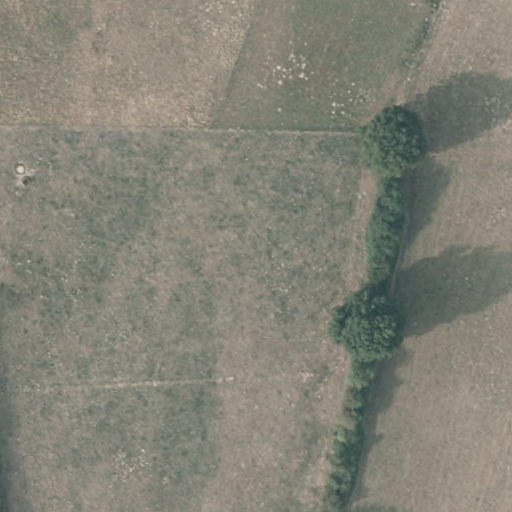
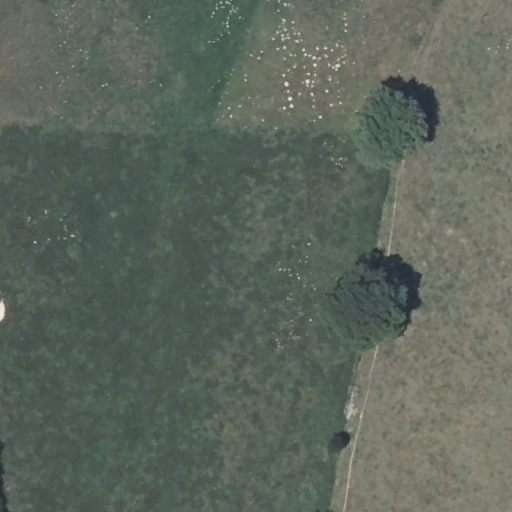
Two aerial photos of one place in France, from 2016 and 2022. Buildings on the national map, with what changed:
[]

